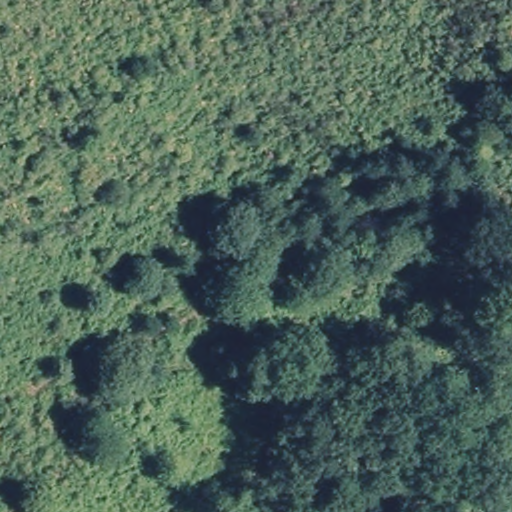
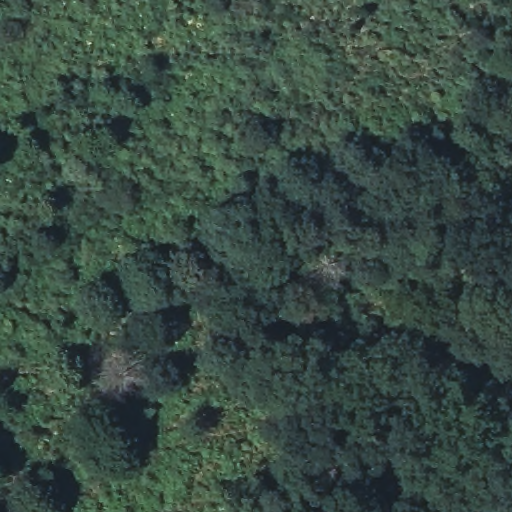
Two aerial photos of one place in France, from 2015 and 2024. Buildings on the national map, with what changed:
[]

